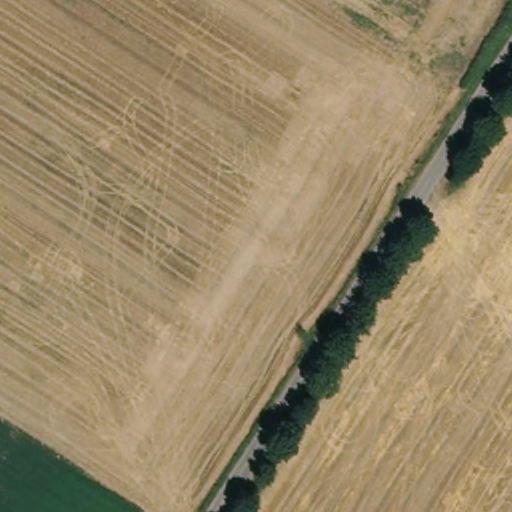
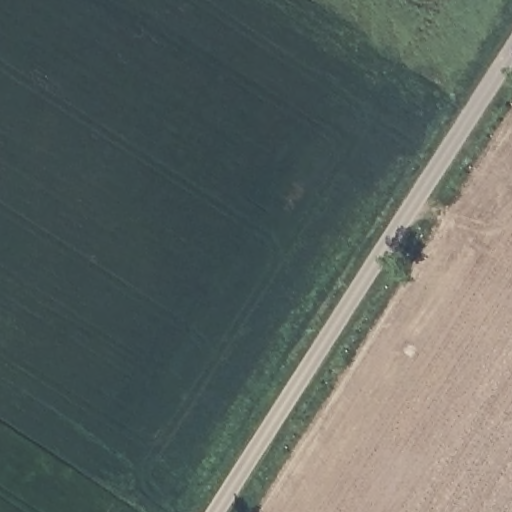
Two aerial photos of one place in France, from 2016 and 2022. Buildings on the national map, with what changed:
[]

